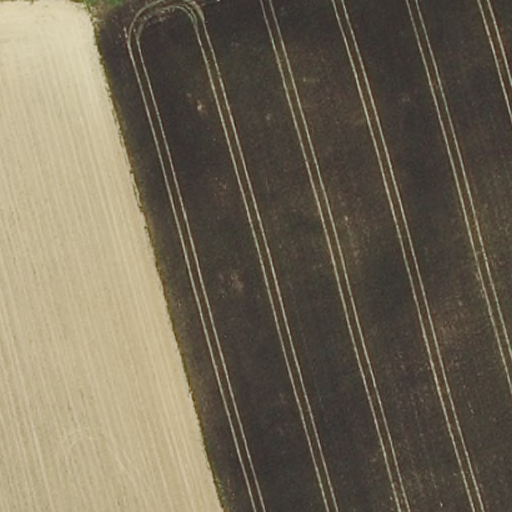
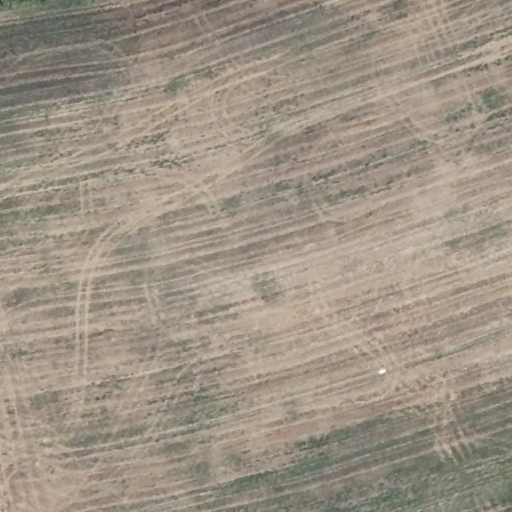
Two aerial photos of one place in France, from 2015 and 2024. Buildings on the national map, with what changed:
[]

